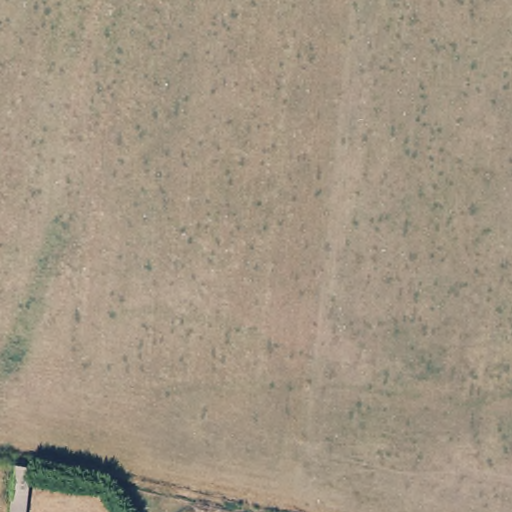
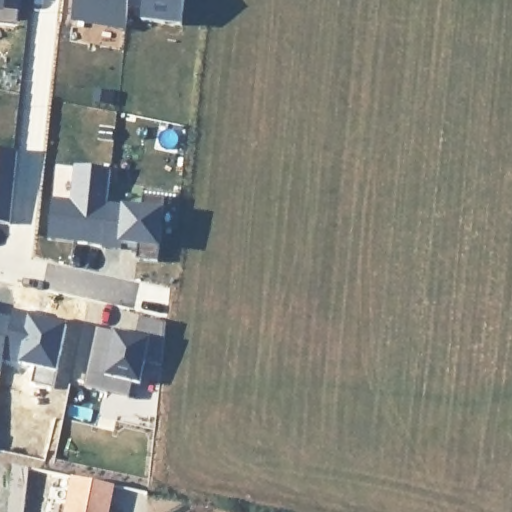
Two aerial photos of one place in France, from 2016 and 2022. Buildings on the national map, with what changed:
new [(0,0),(19,0),(17,19),(0,17),(0,0)]
new [(75,0),(184,0),(180,27),(143,22),(144,10),(127,7),(124,29),(72,22),(75,0)]
new [(0,151),(15,152),(9,225),(0,224),(0,151)]
new [(137,261),(139,247),(122,246),(119,251),(104,250),(99,245),(49,240),(53,200),(73,202),(76,169),(109,172),(106,206),(140,209),(143,197),(164,199),(158,263),(137,261)]
new [(96,330),(136,336),(140,318),(166,324),(161,364),(144,361),(140,385),(130,382),(127,397),(84,388),(96,330)]
new [(0,372),(0,321),(10,322),(0,372)]
unchanged [(9,501),(10,491),(13,466),(28,470),(25,492),(24,502),(9,501)]
new [(70,475),(110,483),(105,512),(63,512),(70,475)]

